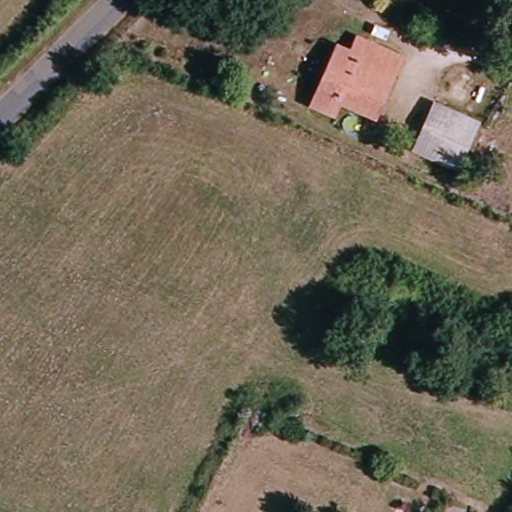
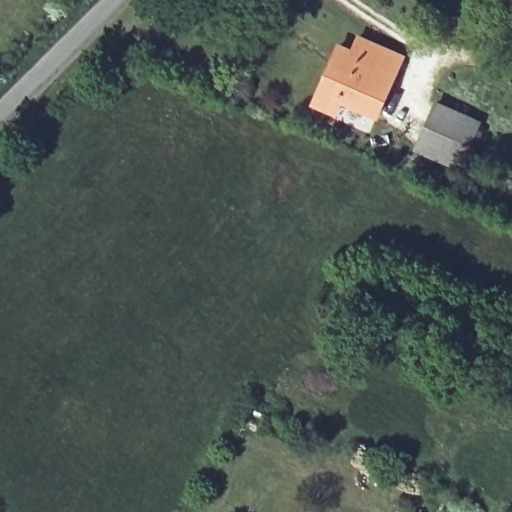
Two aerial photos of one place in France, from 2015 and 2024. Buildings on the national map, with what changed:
unchanged [(368,115),(335,100),(329,114),(305,104),(330,49),(346,55),(353,39),(366,45),(394,56),(368,115)]
unchanged [(471,121),(451,166),(410,148),(430,104),(471,121)]
unchanged [(247,408),(264,416),(255,428),(240,421),(247,408)]

